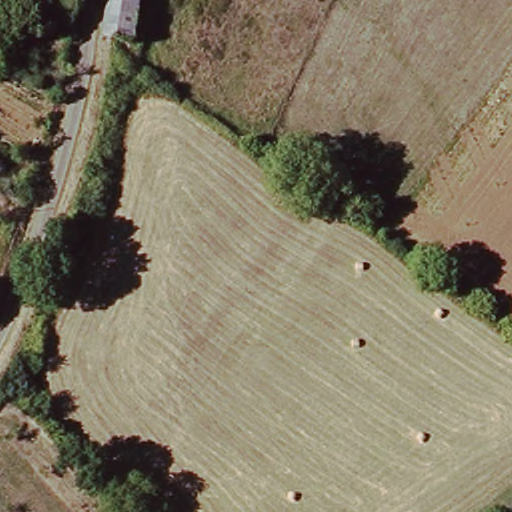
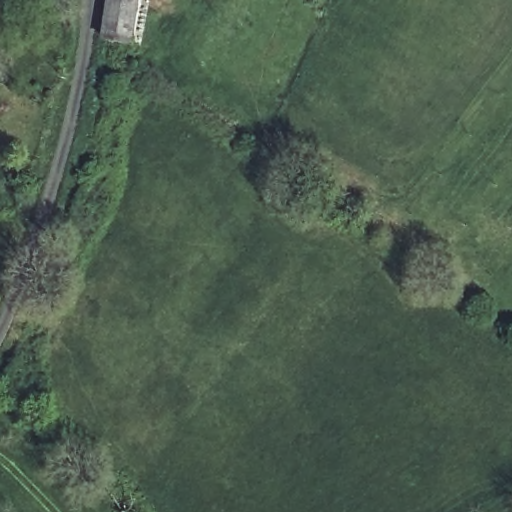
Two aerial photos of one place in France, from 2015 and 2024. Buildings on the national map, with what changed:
unchanged [(104,40),(110,0),(140,0),(134,44),(104,40)]

